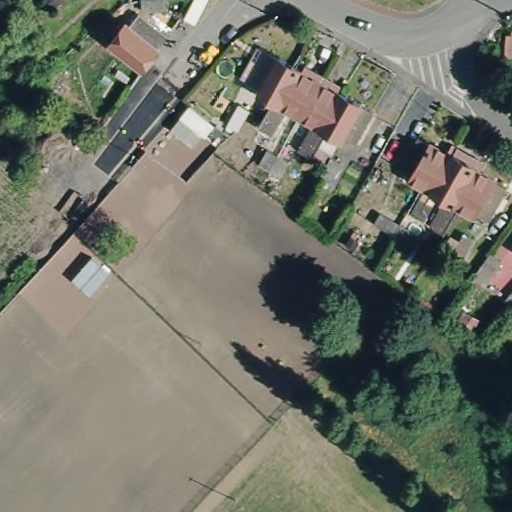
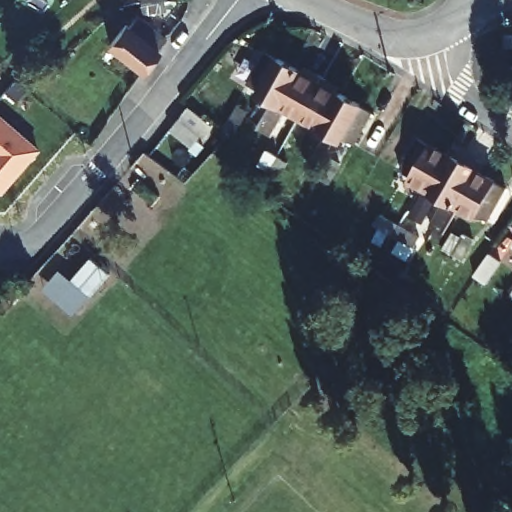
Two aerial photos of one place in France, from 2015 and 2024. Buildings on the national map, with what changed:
unchanged [(155,0),(177,0),(158,9),(155,0)]
unchanged [(116,44),(141,14),(172,41),(149,70),(116,44)]
unchanged [(510,32),(510,54),(500,53),(500,31),(510,32)]
unchanged [(283,111),(276,107),(262,98),(264,94),(253,87),(270,55),(305,75),(283,111)]
unchanged [(320,84),(323,79),(329,82),(305,124),(290,115),(275,140),(261,132),(268,120),(276,107),(283,111),(305,75),(320,84)]
unchanged [(324,150),(315,164),(303,157),(317,132),(305,124),(329,82),(333,85),(331,90),(345,98),(325,135),(331,139),(324,150)]
unchanged [(325,135),(345,98),(378,118),(360,150),(348,143),(346,147),(331,139),(325,135)]
unchanged [(246,108),(236,127),(227,122),(237,102),(246,108)]
unchanged [(190,107),(215,127),(205,138),(180,119),(190,107)]
unchanged [(96,138),(75,120),(86,109),(105,126),(96,138)]
new [(39,150),(1,194),(0,193),(0,112),(39,150)]
unchanged [(202,136),(192,147),(171,131),(180,119),(202,136)]
unchanged [(457,149),(453,157),(435,191),(434,192),(423,186),(410,178),(412,175),(400,168),(418,137),(445,154),(450,144),(457,149)]
unchanged [(275,182),(265,177),(255,172),(267,152),(277,158),(286,164),(275,182)]
unchanged [(435,191),(453,157),(472,167),(453,202),(463,209),(448,235),(436,227),(450,201),(434,192),(435,191)]
unchanged [(453,202),(472,167),(477,159),(483,163),(479,171),(482,173),(507,188),(490,220),(481,214),(478,218),(463,209),(453,202)]
unchanged [(345,166),(334,185),(325,179),(337,160),(345,166)]
unchanged [(408,230),(396,249),(388,244),(378,238),(390,219),(400,225),(408,230)]
unchanged [(476,239),(465,257),(454,251),(466,232),(476,239)]
unchanged [(489,252),(500,260),(485,282),(474,275),(489,252)]

